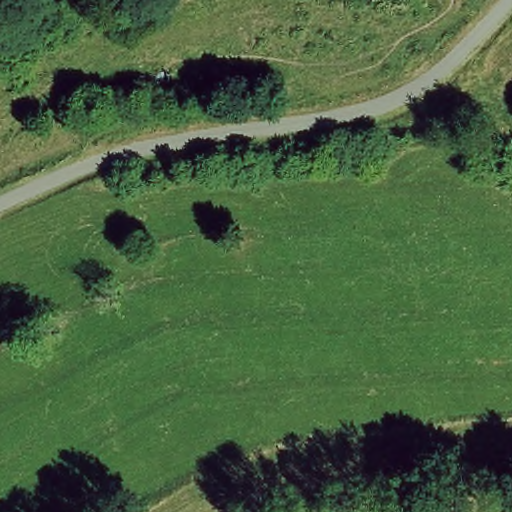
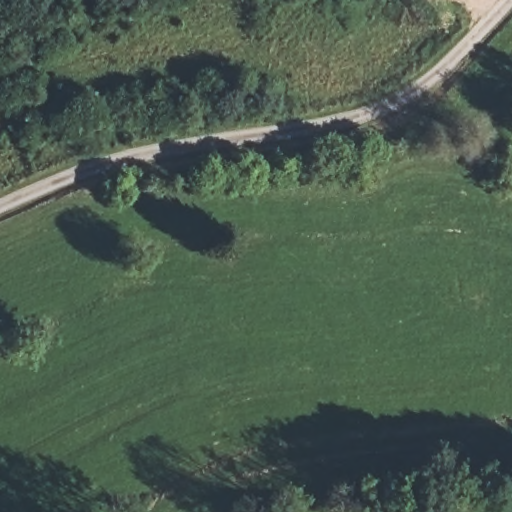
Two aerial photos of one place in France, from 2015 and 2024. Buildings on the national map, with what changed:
[]

